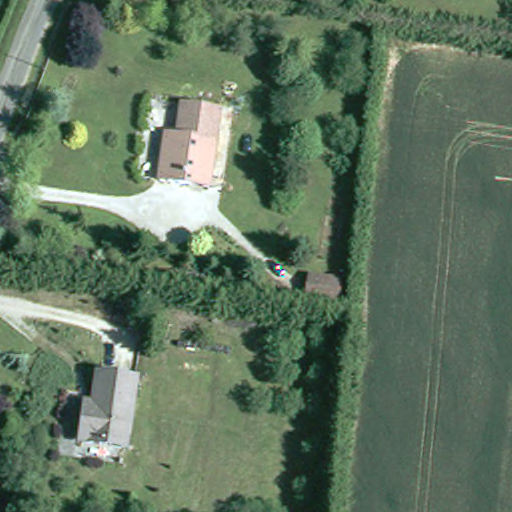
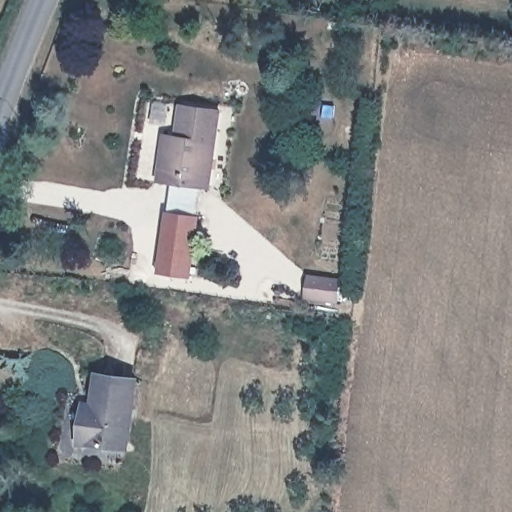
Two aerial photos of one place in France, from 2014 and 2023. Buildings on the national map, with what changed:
unchanged [(218,109),(207,187),(156,180),(162,142),(162,133),(175,135),(180,103),(218,109)]
new [(193,276),(158,271),(166,211),(200,216),(193,276)]
unchanged [(337,302),(304,301),(306,270),(341,275),(337,302)]
unchanged [(130,449),(81,443),(87,396),(96,398),(99,375),(139,381),(130,449)]

